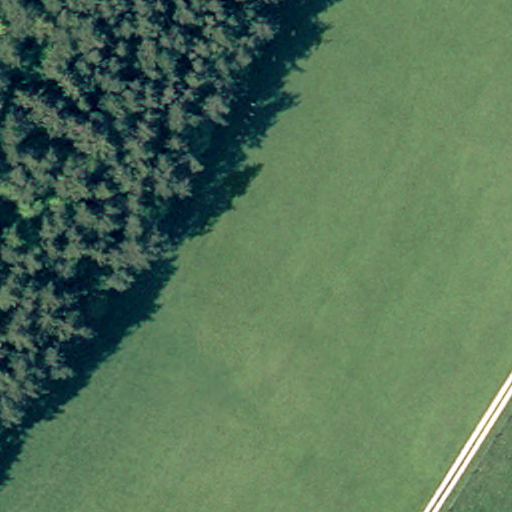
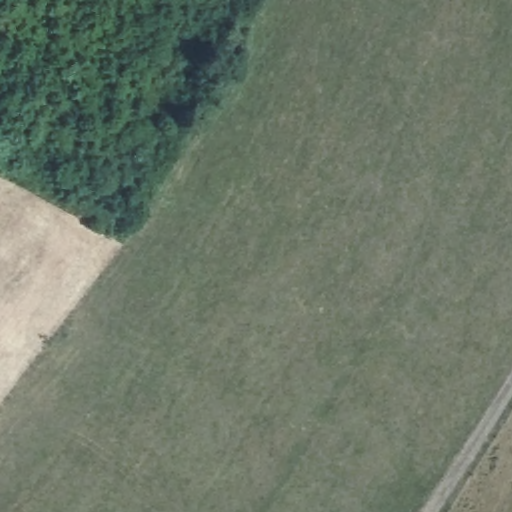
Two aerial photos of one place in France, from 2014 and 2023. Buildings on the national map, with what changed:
[]

